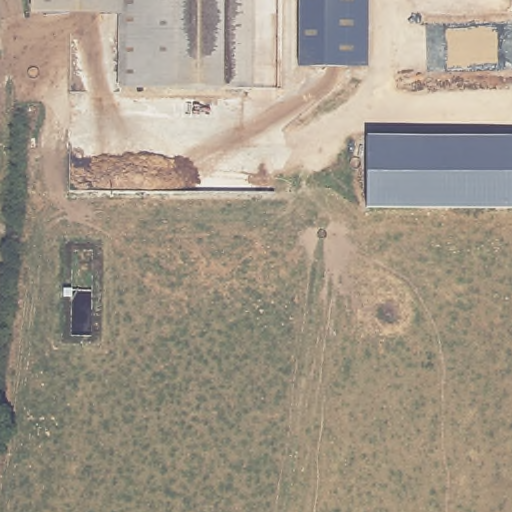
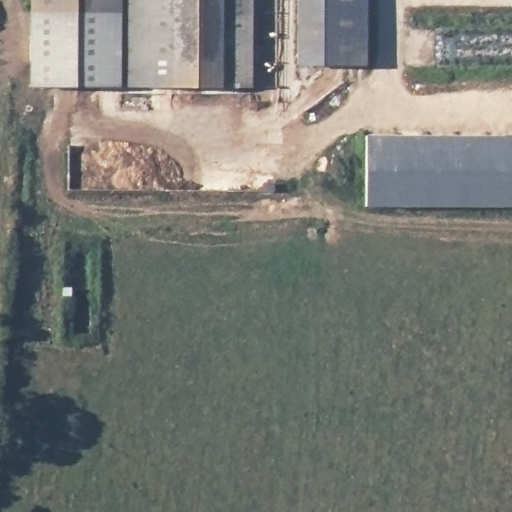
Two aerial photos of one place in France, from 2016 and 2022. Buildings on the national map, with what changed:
unchanged [(47,13),(30,12),(30,0),(100,0),(100,14),(47,13)]
new [(100,14),(100,0),(119,0),(119,85),(119,89),(30,88),(30,12),(47,13),(100,14)]
unchanged [(119,0),(154,0),(152,85),(119,85),(119,0)]
unchanged [(152,85),(154,0),(248,0),(247,85),(152,85)]
unchanged [(298,65),(298,0),(367,0),(366,66),(298,65)]
unchanged [(366,207),(367,135),(512,136),(512,208),(366,207)]

